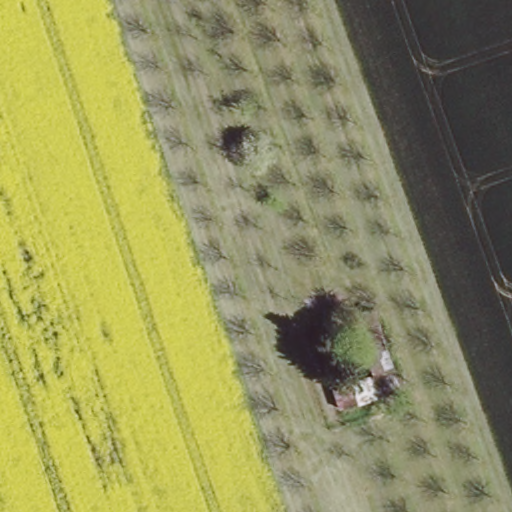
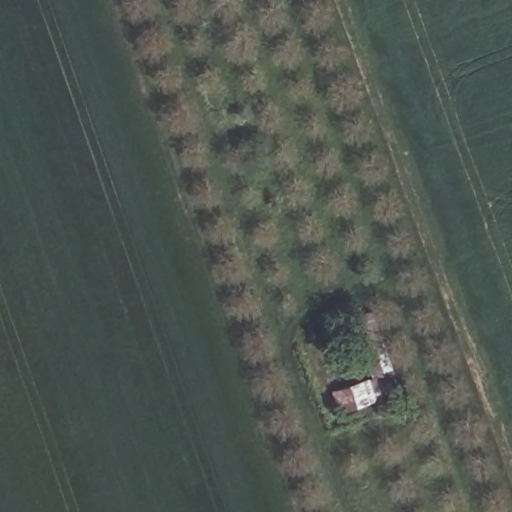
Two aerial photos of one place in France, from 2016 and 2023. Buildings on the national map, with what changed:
unchanged [(335,388),(370,376),(350,313),(372,305),(397,368),(382,375),(390,397),(345,414),(335,388)]

